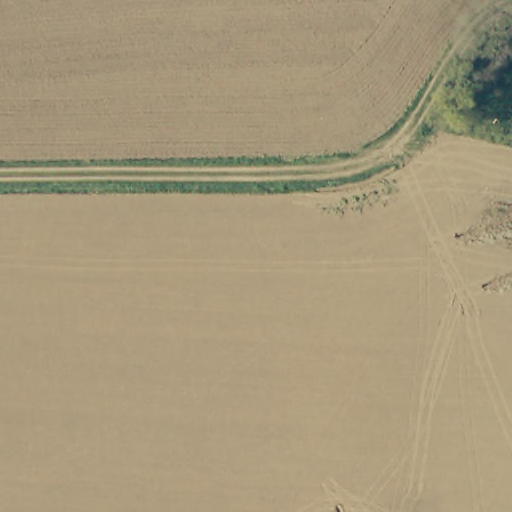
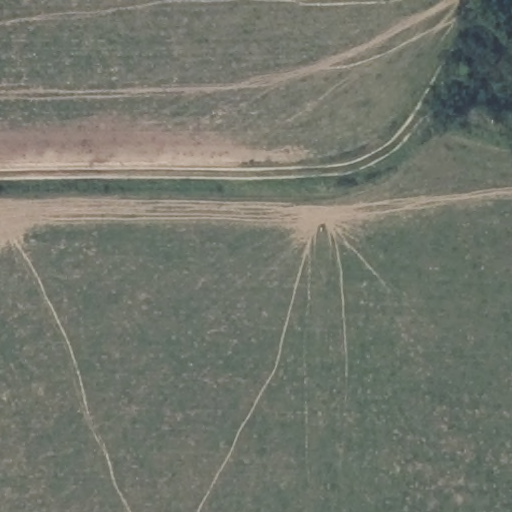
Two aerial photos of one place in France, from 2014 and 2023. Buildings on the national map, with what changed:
[]

